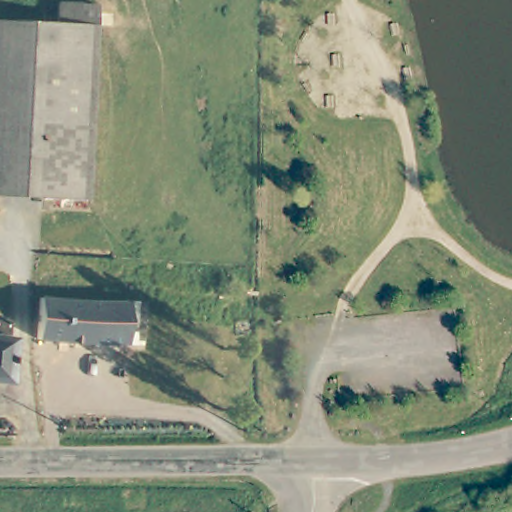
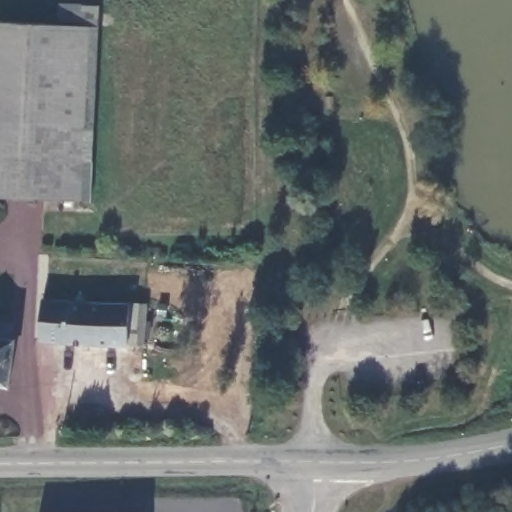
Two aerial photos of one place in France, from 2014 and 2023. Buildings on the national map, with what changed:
unchanged [(0,21),(56,23),(56,5),(95,6),(95,25),(88,200),(0,196),(0,21)]
unchanged [(149,310),(147,348),(46,343),(47,305),(149,310)]
unchanged [(9,388),(0,387),(0,326),(13,327),(9,388)]

